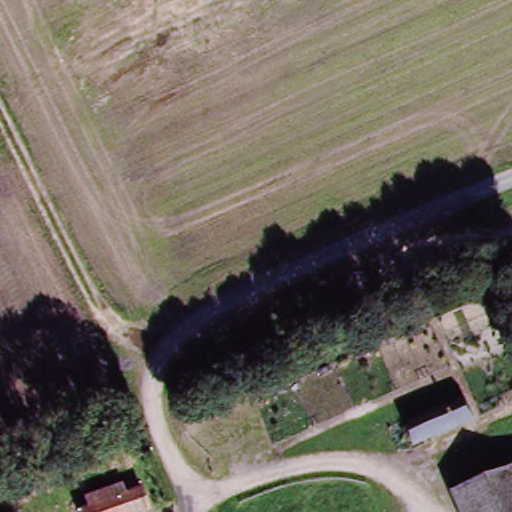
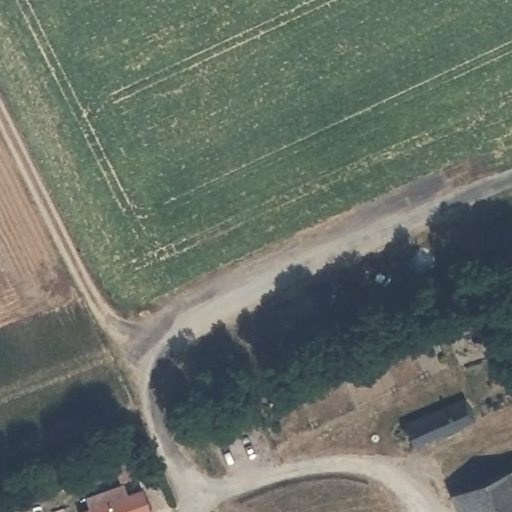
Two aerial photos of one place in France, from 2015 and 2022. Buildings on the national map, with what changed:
unchanged [(451,290),(485,276),(490,290),(457,304),(451,290)]
unchanged [(400,428),(427,417),(422,406),(465,389),(479,421),(469,425),(453,431),(408,450),(400,428)]
unchanged [(512,468),(512,512),(459,512),(450,491),(466,485),(512,468)]
unchanged [(126,493),(133,512),(81,512),(80,510),(126,493)]

